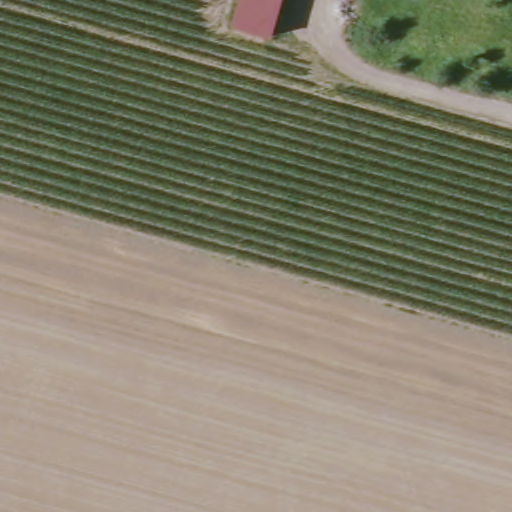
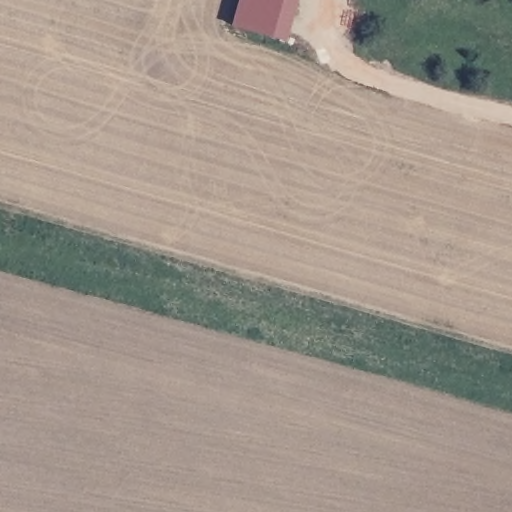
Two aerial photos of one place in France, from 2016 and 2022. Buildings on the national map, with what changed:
unchanged [(270,35),(231,24),(238,0),(280,0),(270,35)]

